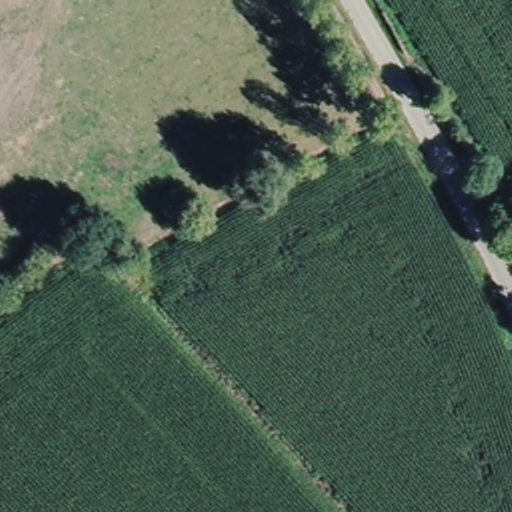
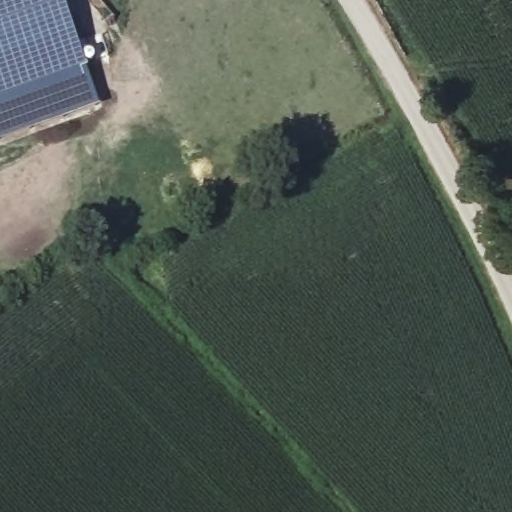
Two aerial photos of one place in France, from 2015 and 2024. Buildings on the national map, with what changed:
new [(58,0),(81,70),(0,99),(0,0),(58,0)]
new [(97,109),(0,143),(0,99),(81,70),(97,109)]

